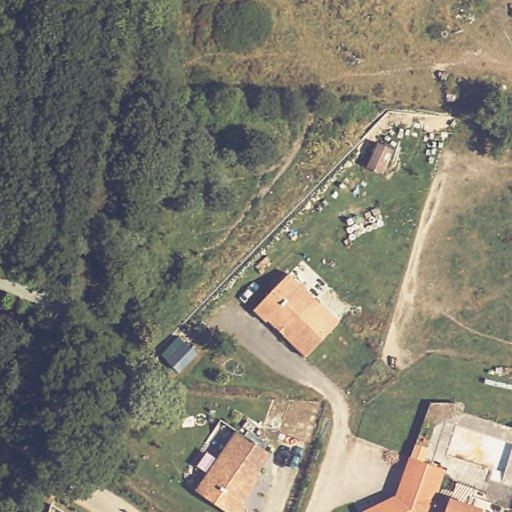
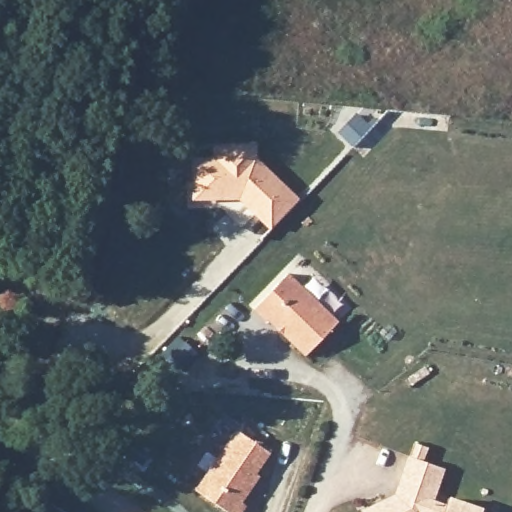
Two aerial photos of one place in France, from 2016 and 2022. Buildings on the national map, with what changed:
new [(213,158),(212,145),(256,145),(257,159),(299,199),(270,230),(240,200),(193,202),(191,159),(213,158)]
unchanged [(289,275),(341,321),(310,357),(285,335),(286,333),(271,320),(269,323),(256,312),(289,275)]
unchanged [(189,358),(171,376),(160,366),(178,347),(189,358)]
unchanged [(268,451),(255,473),(259,476),(243,503),(248,506),(244,512),(224,512),(195,495),(232,431),(268,451)]
unchanged [(428,505),(443,510),(445,501),(480,511),(480,512),(371,512),(393,500),(405,462),(438,472),(428,505)]

